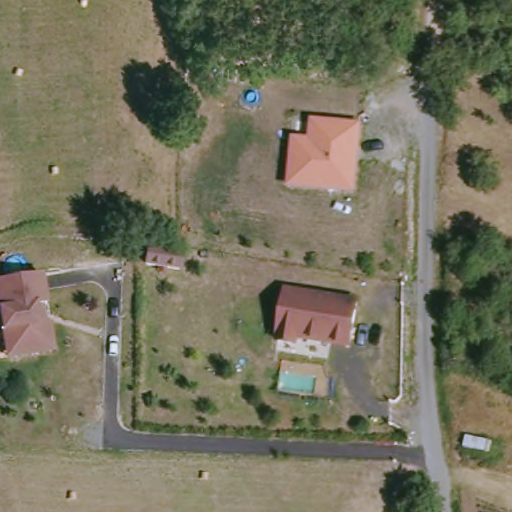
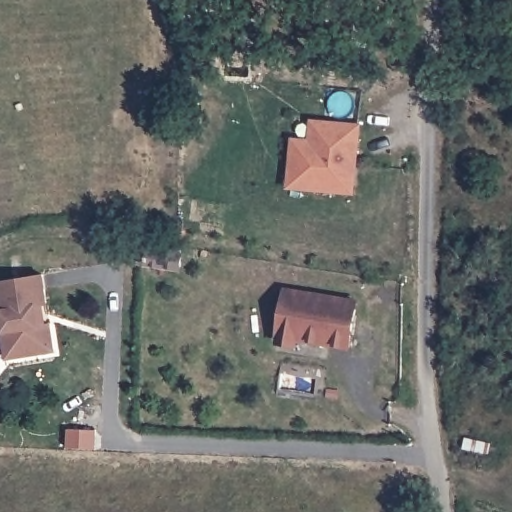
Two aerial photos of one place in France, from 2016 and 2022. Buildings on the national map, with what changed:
unchanged [(362,123),(356,194),(286,188),(291,136),(308,137),(309,118),(362,123)]
unchanged [(179,248),(176,263),(145,257),(148,242),(179,248)]
unchanged [(8,330),(0,290),(0,280),(43,271),(49,302),(39,304),(43,322),(53,320),(58,347),(20,355),(13,356),(8,330)]
unchanged [(386,284),(384,296),(369,293),(371,282),(386,284)]
unchanged [(359,302),(351,349),(299,339),(299,342),(279,338),(289,289),(359,302)]
unchanged [(464,451),(465,434),(494,440),(493,455),(464,451)]

